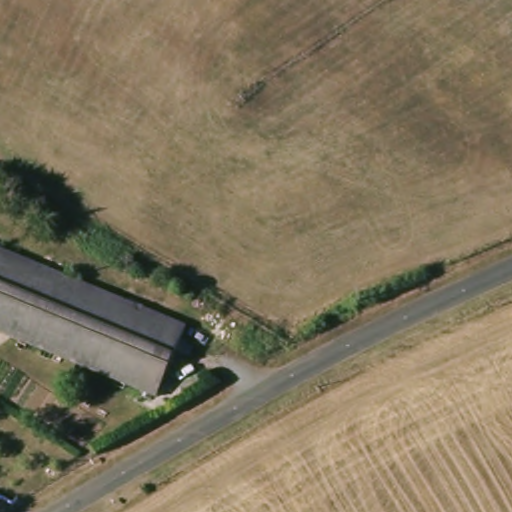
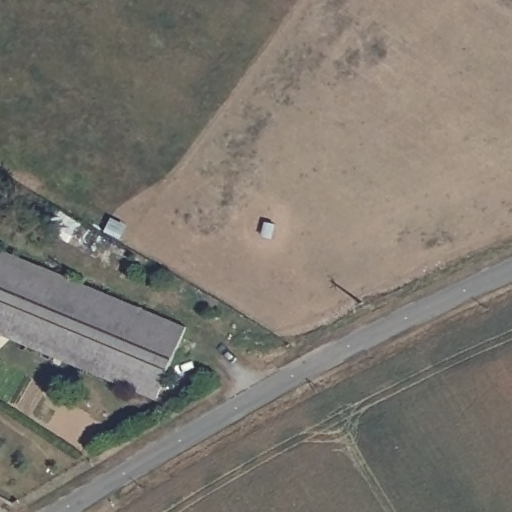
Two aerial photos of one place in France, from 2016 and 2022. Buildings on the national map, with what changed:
unchanged [(187,324),(160,399),(0,336),(0,250),(187,324)]

